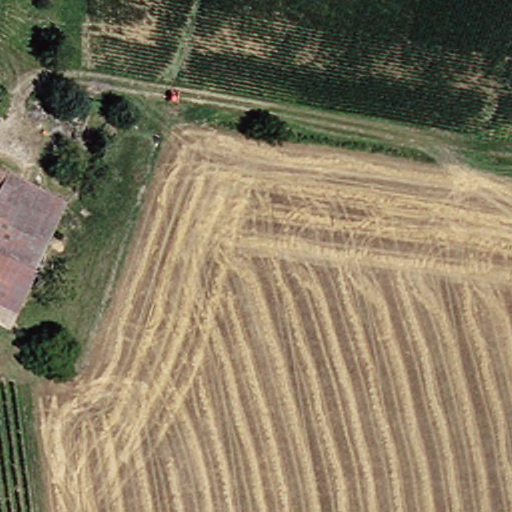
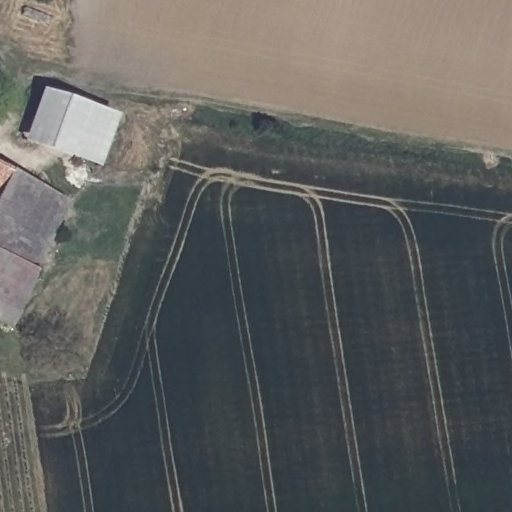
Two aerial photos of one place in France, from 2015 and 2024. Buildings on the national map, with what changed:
new [(100,169),(25,144),(42,92),(117,117),(100,169)]
unchanged [(4,216),(0,214),(0,164),(65,195),(78,200),(35,290),(17,330),(0,322),(0,224),(4,216)]

